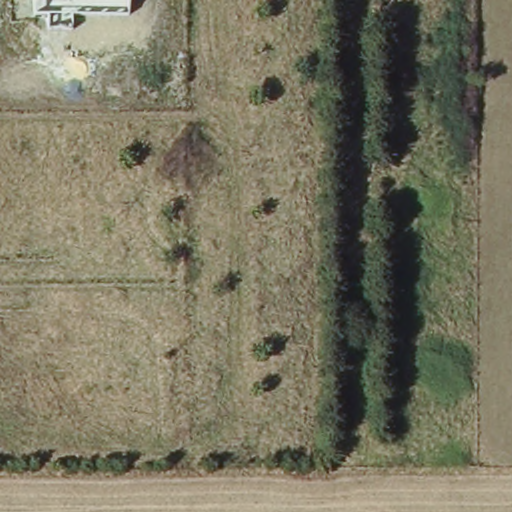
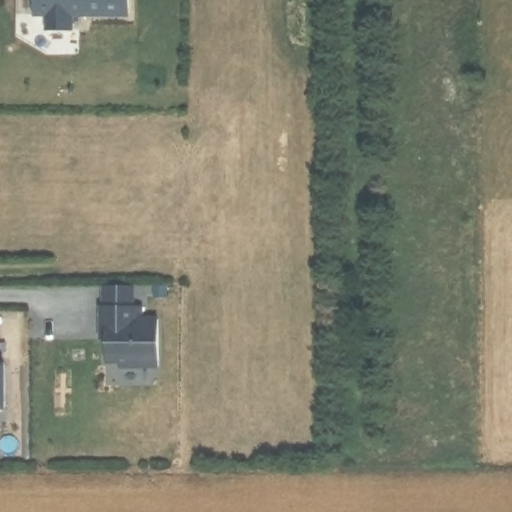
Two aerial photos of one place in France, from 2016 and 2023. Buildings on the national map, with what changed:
new [(130,8),(70,10),(69,26),(51,24),(52,10),(36,10),(36,0),(130,0),(130,8)]
new [(104,309),(104,289),(134,289),(134,309),(142,309),(141,322),(158,322),(159,369),(119,369),(119,364),(105,364),(106,343),(101,343),(101,328),(101,309),(104,309)]

